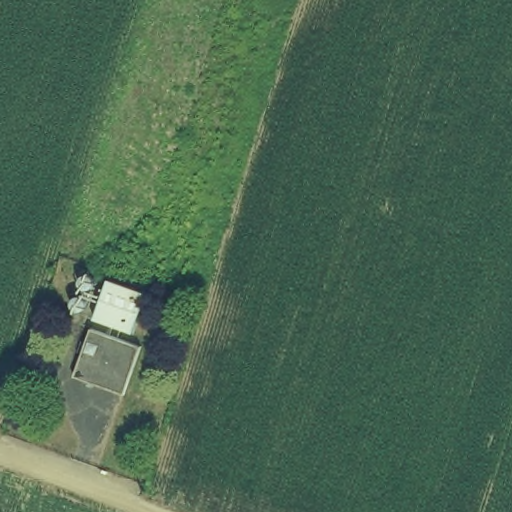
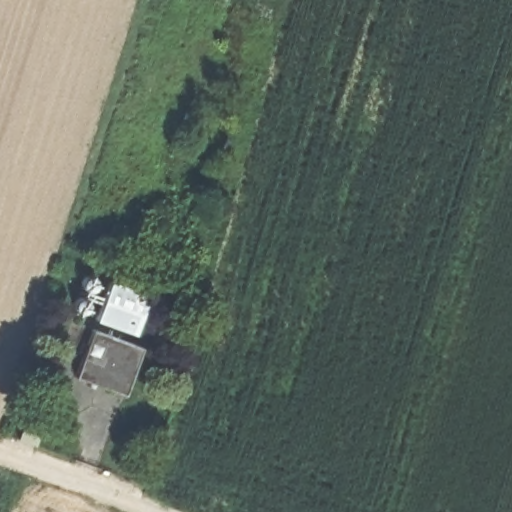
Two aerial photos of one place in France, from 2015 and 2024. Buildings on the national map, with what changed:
unchanged [(110,278),(152,293),(137,336),(99,321),(110,278)]
unchanged [(92,328),(142,346),(125,394),(75,376),(92,328)]

